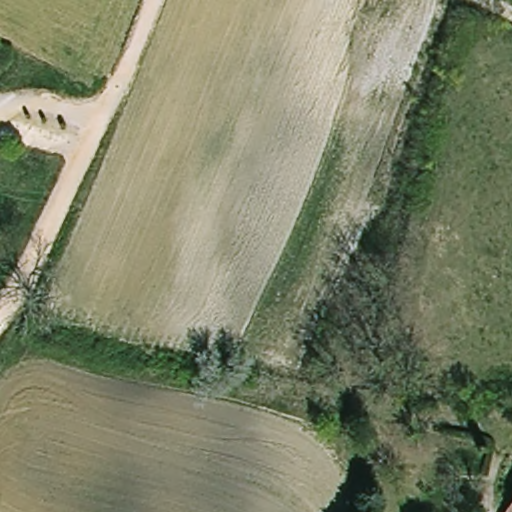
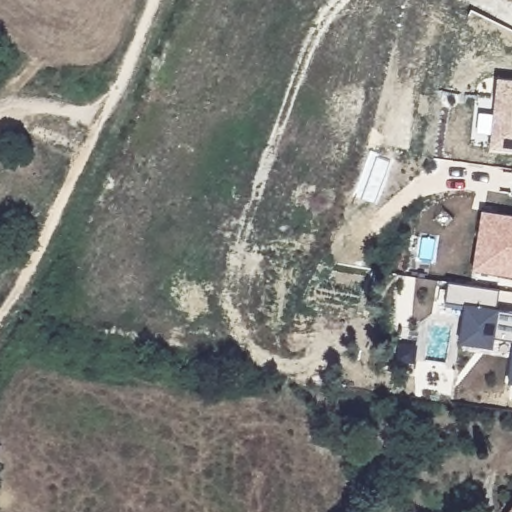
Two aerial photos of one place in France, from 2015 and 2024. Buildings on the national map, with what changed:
new [(512,79),(512,150),(489,147),(496,77),(512,79)]
new [(512,215),(512,276),(472,269),(481,210),(512,215)]
new [(499,289),(496,307),(500,309),(500,310),(512,312),(512,340),(495,337),(493,348),(459,342),(465,305),(444,302),(448,282),(499,289)]
new [(508,383),(512,359),(512,384),(508,383)]
unchanged [(492,494),(500,466),(512,470),(512,500),(492,494)]

